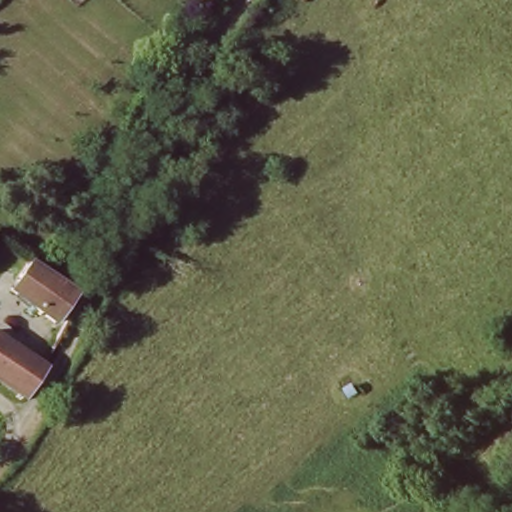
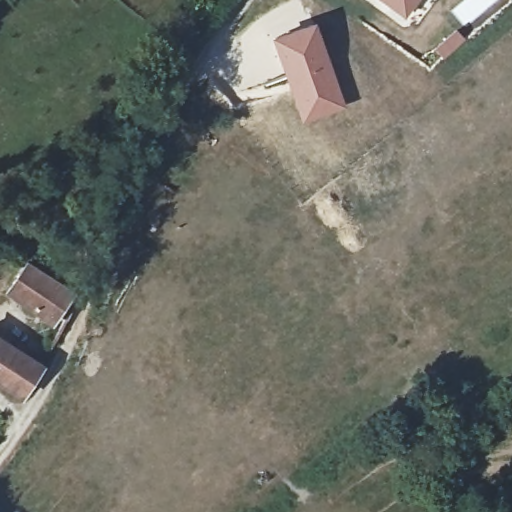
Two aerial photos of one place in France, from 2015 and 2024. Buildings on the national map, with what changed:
new [(407,19),(382,0),(420,0),(407,19)]
new [(316,20),(346,108),(302,125),(269,36),(316,20)]
unchanged [(59,316),(50,310),(44,319),(1,288),(19,262),(62,291),(57,300),(67,305),(59,316)]
unchanged [(0,341),(40,368),(21,398),(0,384),(0,341)]

